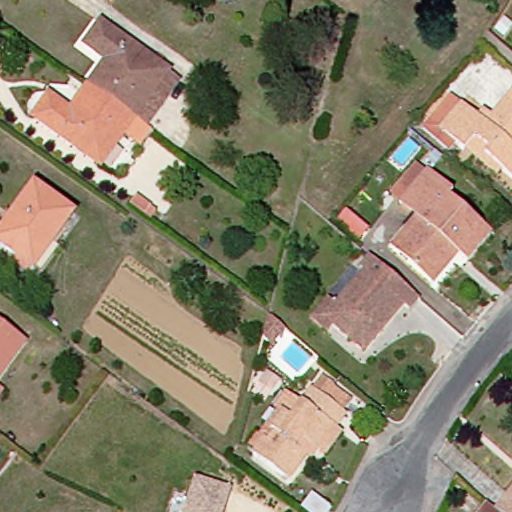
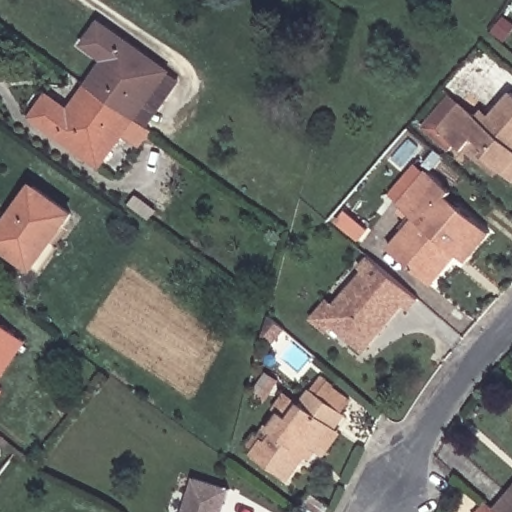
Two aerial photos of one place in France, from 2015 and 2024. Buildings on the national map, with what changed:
unchanged [(111,60),(90,45),(105,24),(173,72),(140,119),(135,115),(93,85),(111,60)]
unchanged [(135,115),(140,119),(155,129),(145,143),(129,132),(106,165),(39,116),(53,96),(74,111),(93,85),(135,115)]
unchanged [(462,142),(455,150),(429,128),(457,95),(467,104),(484,118),(489,112),(496,119),(512,100),(512,174),(503,166),(497,173),(469,149),(462,142)]
unchanged [(433,280),(400,252),(397,249),(422,219),(406,205),(395,196),(423,164),(433,172),(434,171),(458,191),(454,196),(496,232),(471,261),(463,254),(438,284),(433,280)]
unchanged [(46,273),(38,267),(1,240),(39,187),(76,215),(57,242),(64,247),(46,273)]
unchanged [(354,337),(338,323),(332,330),(318,319),(334,301),(340,307),(371,271),(367,268),(376,258),(423,298),(414,308),(409,304),(375,344),(369,350),(354,337)]
unchanged [(283,327),(269,342),(263,336),(269,315),(283,327)]
unchanged [(0,384),(0,319),(31,341),(0,384)]
unchanged [(311,457),(294,480),(259,455),(261,451),(254,446),(263,435),(274,443),(281,433),(276,430),(288,413),(281,408),(291,395),(306,406),(318,390),(326,379),(353,399),(345,410),(351,415),(341,428),(346,432),(329,455),(324,451),(316,460),(311,457)]
unchanged [(0,387),(6,392),(0,401),(0,387)]
unchanged [(194,478),(231,490),(224,512),(184,512),(194,478)]
unchanged [(331,510),(329,512),(305,512),(303,510),(313,496),(331,510)]
unchanged [(512,496),(512,512),(503,512),(501,510),(512,496)]
unchanged [(493,503),(501,510),(503,512),(486,512),(493,503)]

